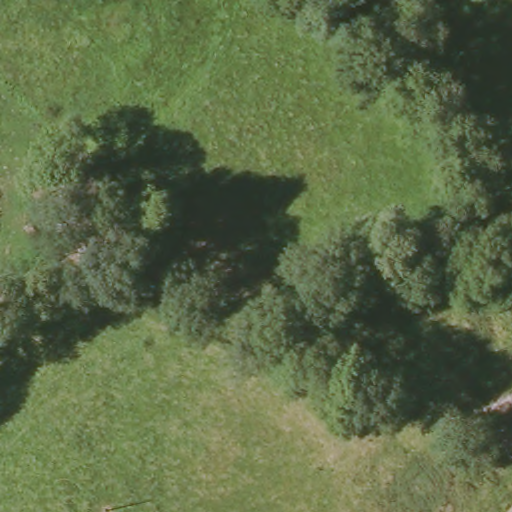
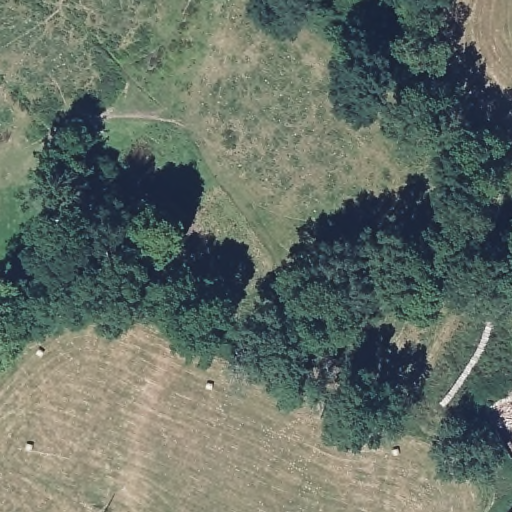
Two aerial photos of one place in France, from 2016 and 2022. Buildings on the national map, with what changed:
unchanged [(512,509),(512,512),(510,512),(512,509)]

